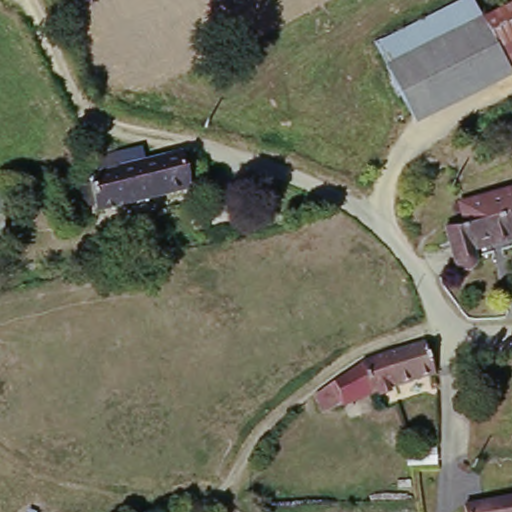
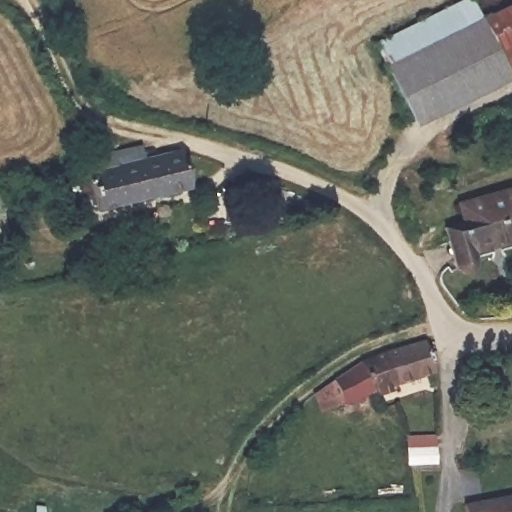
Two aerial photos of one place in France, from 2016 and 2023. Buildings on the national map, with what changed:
unchanged [(377,46),(473,5),(482,26),(387,68),(377,46)]
unchanged [(482,26),(512,14),(512,51),(496,59),(482,26)]
unchanged [(482,26),(496,59),(501,70),(406,111),(387,68),(482,26)]
unchanged [(92,180),(112,175),(183,159),(191,189),(96,212),(88,181),(92,180)]
unchanged [(483,268),(482,272),(480,274),(478,275),(475,277),(471,278),(467,276),(464,274),(461,270),(461,265),(452,233),(472,227),(467,206),(512,194),(512,246),(481,255),(483,263),(483,268)]
unchanged [(0,222),(0,212),(2,222),(0,222)]
unchanged [(0,226),(3,240),(0,240),(0,226)]
unchanged [(351,375),(361,368),(378,362),(427,348),(437,380),(395,391),(362,401),(323,414),(319,402),(316,393),(345,378),(351,375)]
unchanged [(512,504),(512,512),(465,512),(512,504)]

